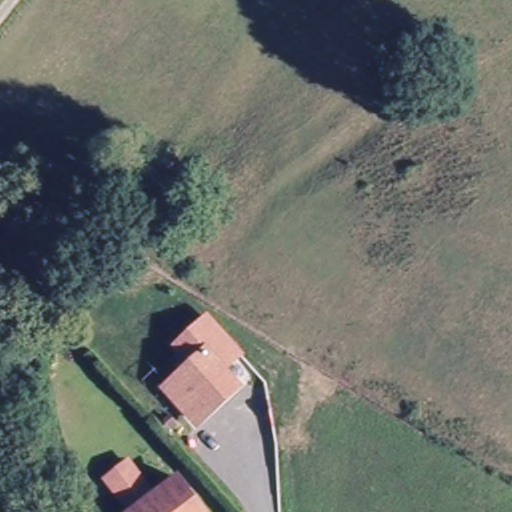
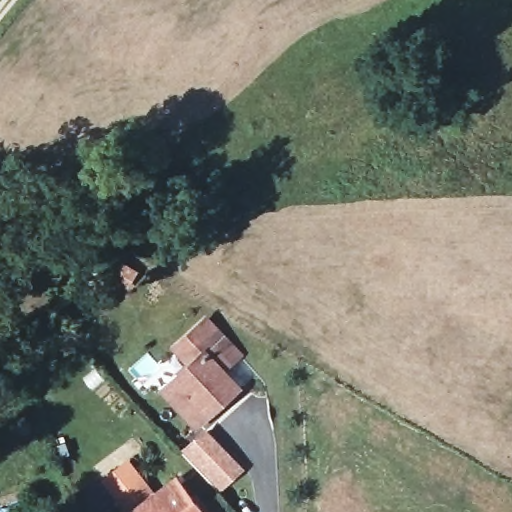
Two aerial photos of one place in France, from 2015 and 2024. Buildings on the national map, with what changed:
unchanged [(208,313),(245,353),(225,370),(208,352),(189,369),(171,348),(208,313)]
unchanged [(189,369),(208,352),(225,370),(236,383),(195,420),(166,389),(189,369)]
new [(206,427),(244,467),(222,488),(183,448),(206,427)]
unchanged [(101,478),(126,461),(150,491),(123,511),(101,478)]
unchanged [(178,478),(204,512),(133,512),(178,478)]

